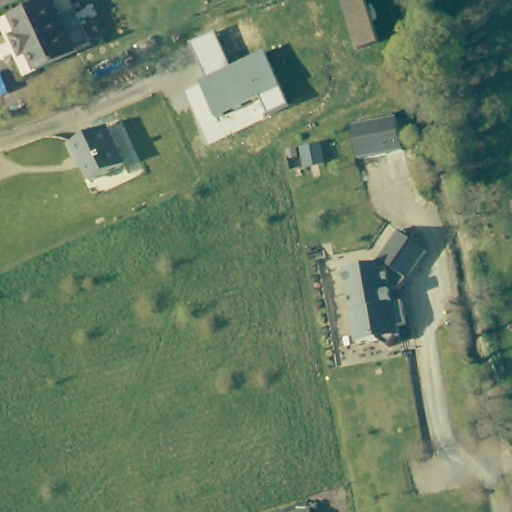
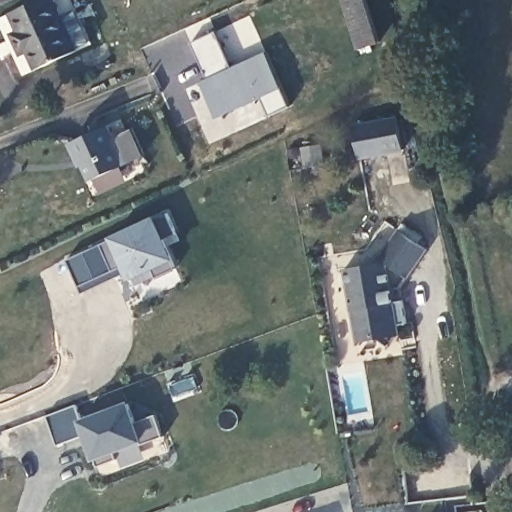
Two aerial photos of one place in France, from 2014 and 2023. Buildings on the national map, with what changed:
unchanged [(82,50),(29,75),(21,58),(12,60),(5,42),(12,39),(3,19),(45,0),(58,0),(82,50)]
unchanged [(375,44),(354,50),(337,0),(360,0),(375,44)]
unchanged [(271,117),(264,98),(217,119),(200,83),(208,80),(191,43),(216,32),(232,67),(267,51),(291,106),(271,117)]
unchanged [(360,161),(353,125),(398,117),(403,152),(360,161)]
unchanged [(119,164),(84,180),(73,157),(70,159),(62,143),(101,125),(119,164)]
new [(166,239),(175,258),(177,268),(158,278),(156,270),(130,282),(126,275),(84,293),(67,260),(110,239),(157,216),(158,220),(167,213),(177,231),(166,239)]
unchanged [(368,263),(391,230),(420,249),(394,288),(386,290),(387,301),(396,300),(401,323),(392,325),(394,335),(392,335),(383,346),(372,338),(352,342),(338,269),(368,263)]
new [(75,405),(81,420),(127,402),(134,421),(155,412),(163,434),(141,442),(139,438),(114,448),(117,457),(97,465),(89,443),(92,442),(90,436),(87,437),(85,434),(57,445),(45,416),(75,405)]

